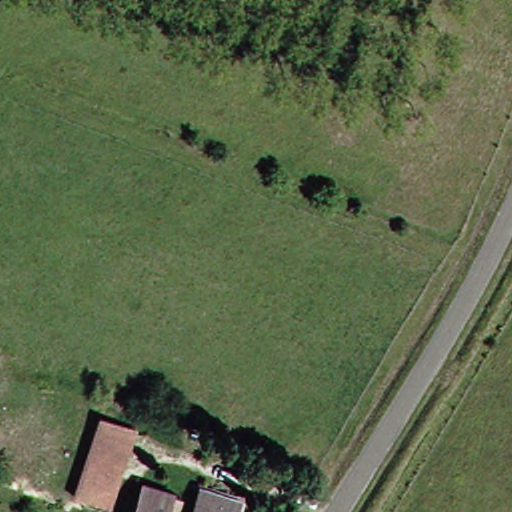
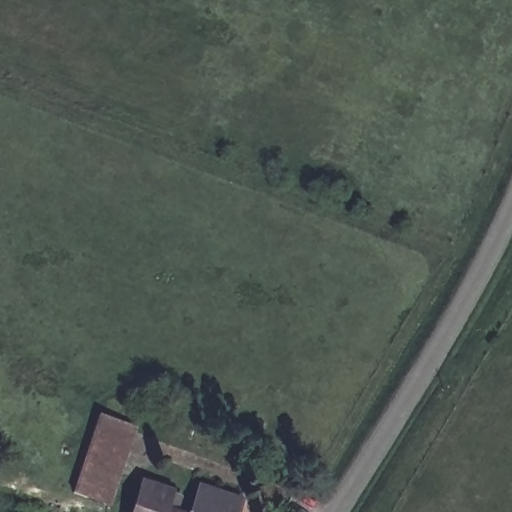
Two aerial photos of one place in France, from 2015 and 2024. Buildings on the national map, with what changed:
unchanged [(135,425),(110,503),(74,491),(99,414),(135,425)]
unchanged [(142,478),(175,490),(168,508),(177,512),(131,512),(142,478)]
unchanged [(196,484),(237,498),(232,512),(186,512),(196,484)]

